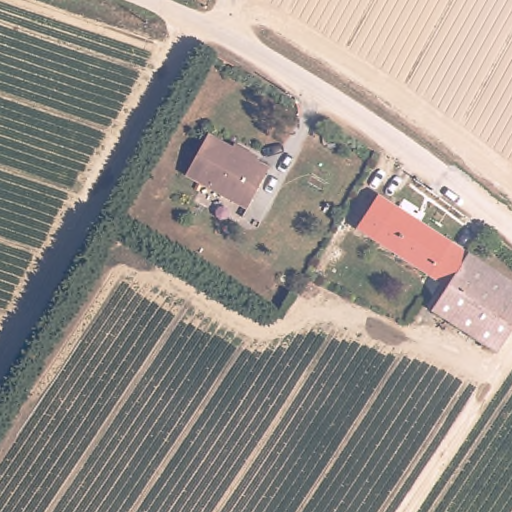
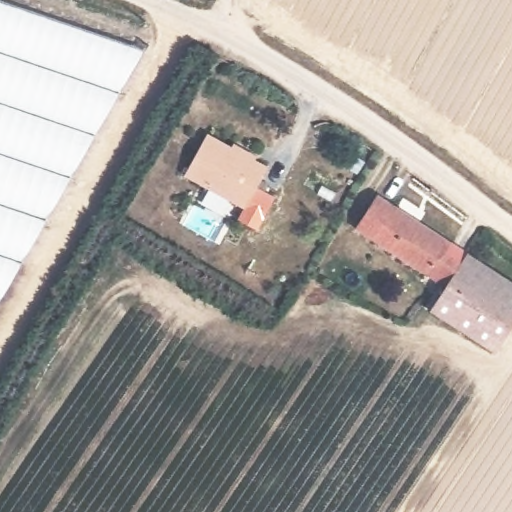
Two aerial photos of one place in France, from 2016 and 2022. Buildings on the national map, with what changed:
new [(0,305),(0,0),(147,50),(0,305)]
unchanged [(187,171),(211,130),(270,166),(246,206),(187,171)]
unchanged [(463,249),(441,282),(355,224),(376,192),(463,249)]
unchanged [(463,249),(512,281),(512,316),(492,348),(426,305),(441,282),(463,249)]

